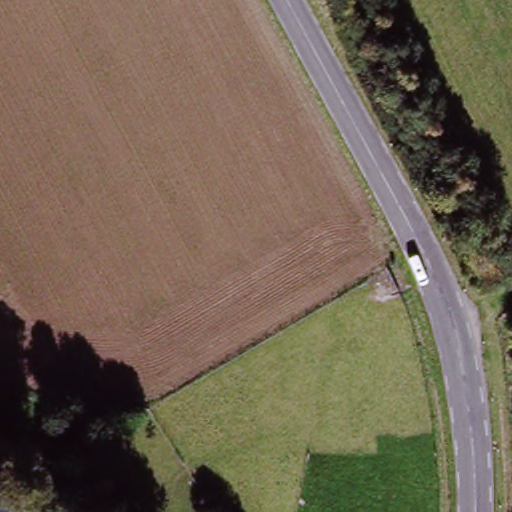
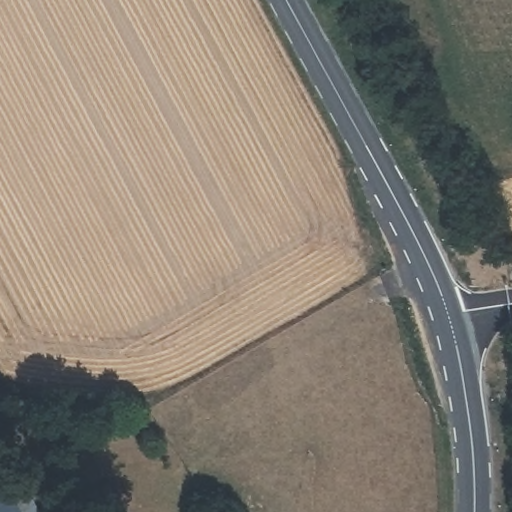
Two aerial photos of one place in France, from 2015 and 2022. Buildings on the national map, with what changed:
unchanged [(22,512),(0,512),(0,484),(6,480),(22,512)]

